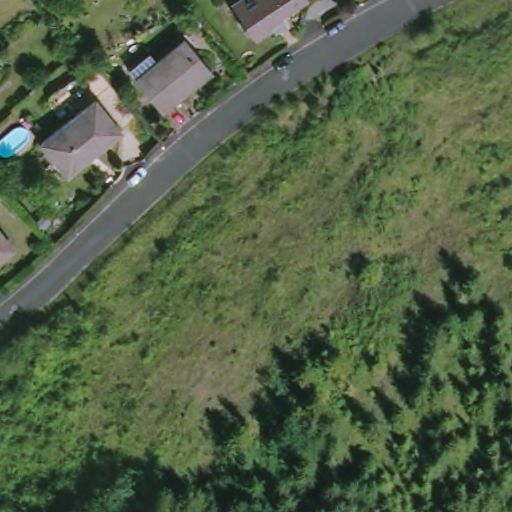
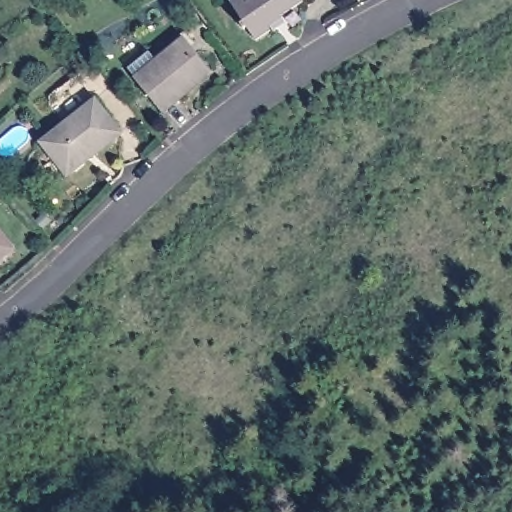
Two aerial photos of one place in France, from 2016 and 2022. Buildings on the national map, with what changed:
unchanged [(264,18),(268,22),(252,34),(231,2),(234,0),(290,0),(264,18)]
unchanged [(204,69),(172,98),(188,116),(169,131),(152,114),(156,110),(130,79),(177,37),(204,69)]
unchanged [(116,125),(67,175),(38,145),(87,96),(116,125)]
unchanged [(7,247),(0,253),(0,239),(7,247)]

